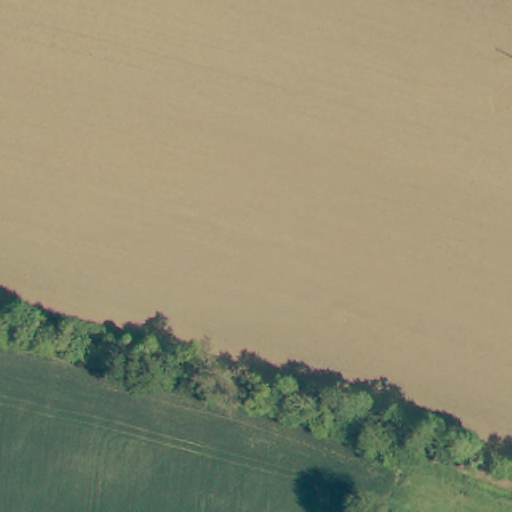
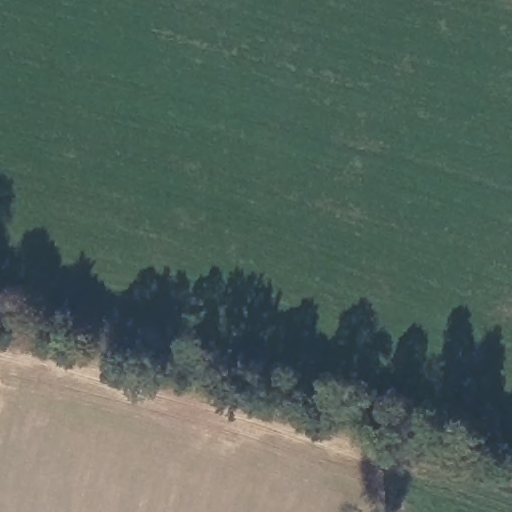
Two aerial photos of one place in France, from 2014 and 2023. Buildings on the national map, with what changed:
[]

